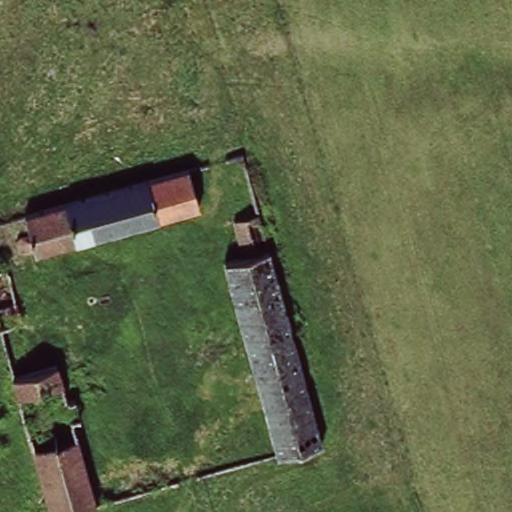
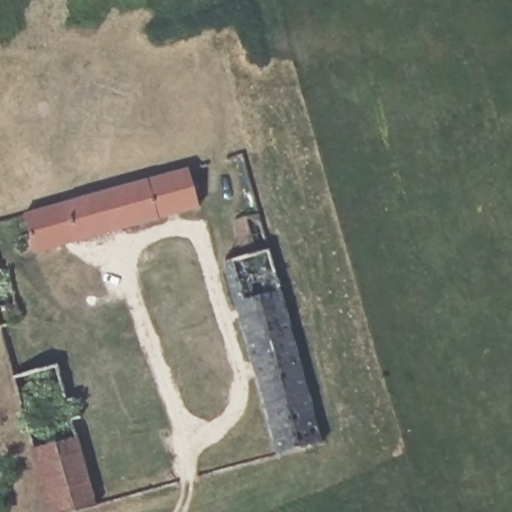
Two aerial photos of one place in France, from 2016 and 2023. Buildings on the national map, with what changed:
unchanged [(198,204),(34,248),(24,211),(189,166),(198,204)]
unchanged [(327,447),(281,460),(228,268),(246,262),(235,226),(264,218),(327,447)]
unchanged [(1,268),(5,266),(20,320),(0,327),(0,265),(1,268)]
unchanged [(67,397),(73,396),(78,418),(73,421),(98,505),(72,512),(51,512),(13,375),(58,365),(67,397)]

